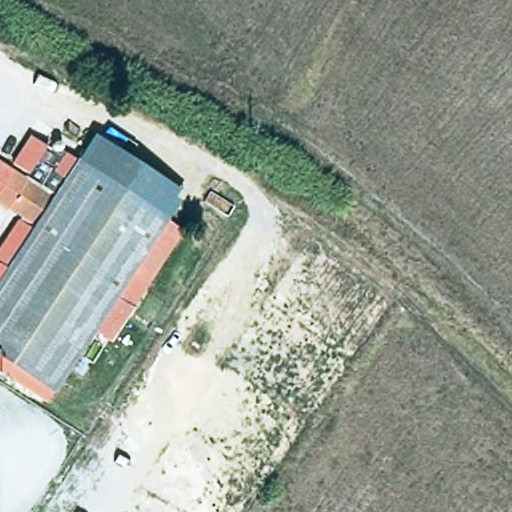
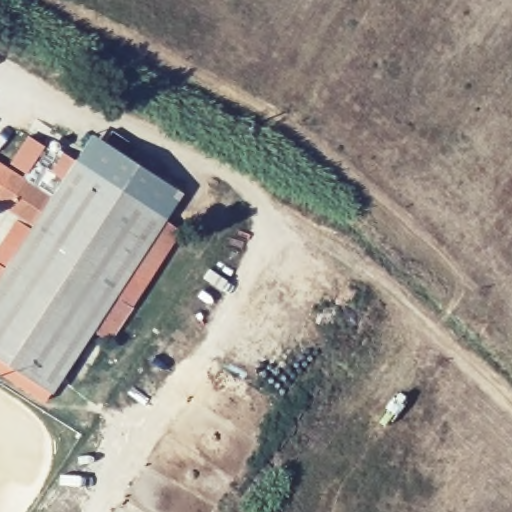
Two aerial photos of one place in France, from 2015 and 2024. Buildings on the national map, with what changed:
unchanged [(165,219),(181,230),(104,341),(89,333),(45,403),(0,373),(0,233),(11,214),(0,207),(0,160),(7,164),(27,131),(75,155),(90,133),(181,189),(165,219)]

